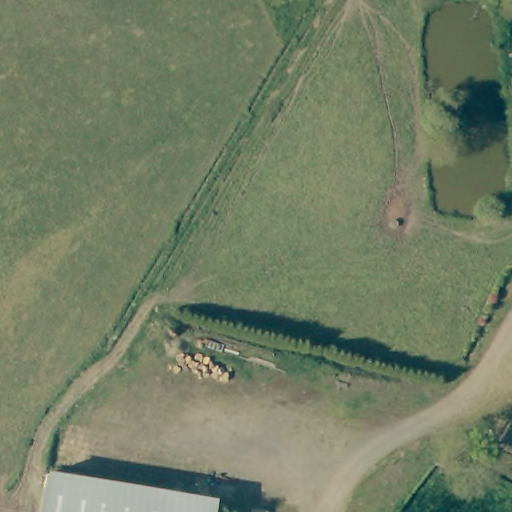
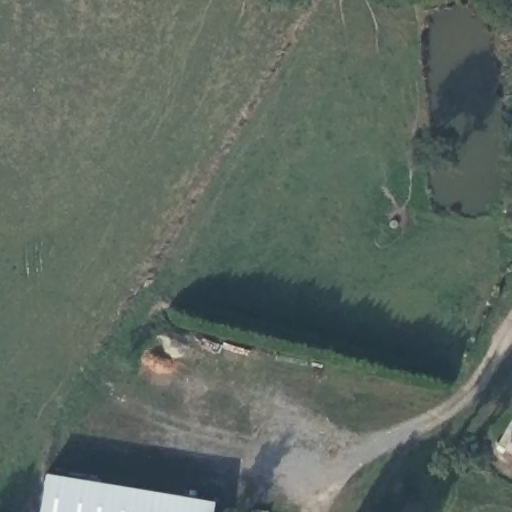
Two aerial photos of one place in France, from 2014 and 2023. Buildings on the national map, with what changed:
unchanged [(512,431),(512,453),(502,447),(512,431)]
unchanged [(210,503),(208,512),(36,512),(43,472),(210,503)]

